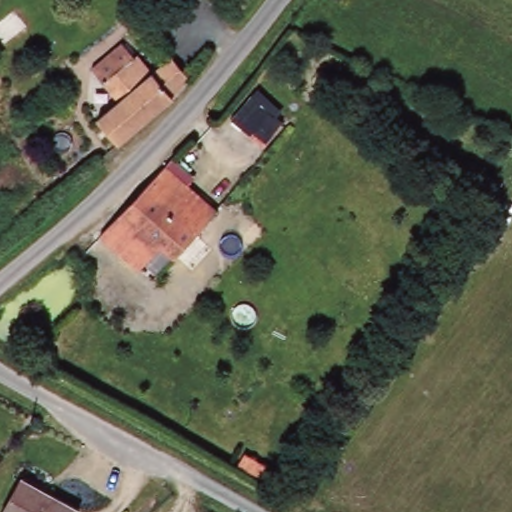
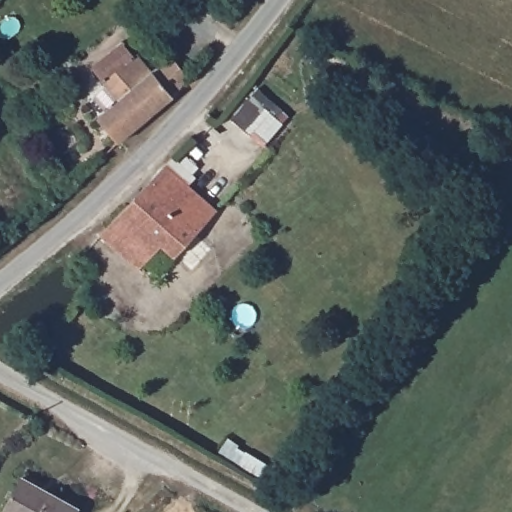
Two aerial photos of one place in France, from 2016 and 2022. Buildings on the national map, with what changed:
unchanged [(172,106),(120,147),(100,123),(119,107),(95,79),(126,51),(137,62),(135,65),(149,80),(172,60),(190,80),(172,106)]
unchanged [(170,168),(222,217),(179,263),(165,250),(144,272),(142,274),(105,238),(170,168)]
unchanged [(81,512),(5,512),(22,478),(82,508),(81,512)]

